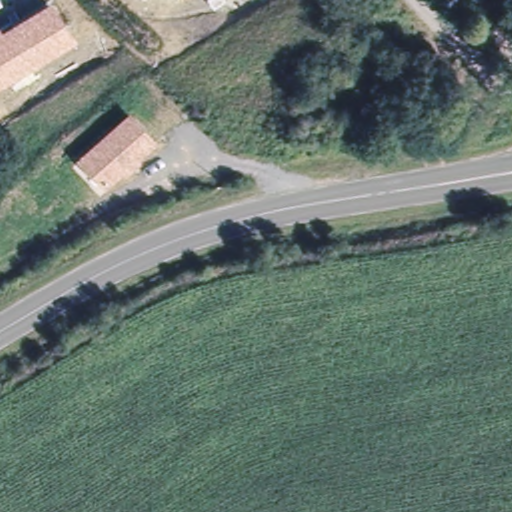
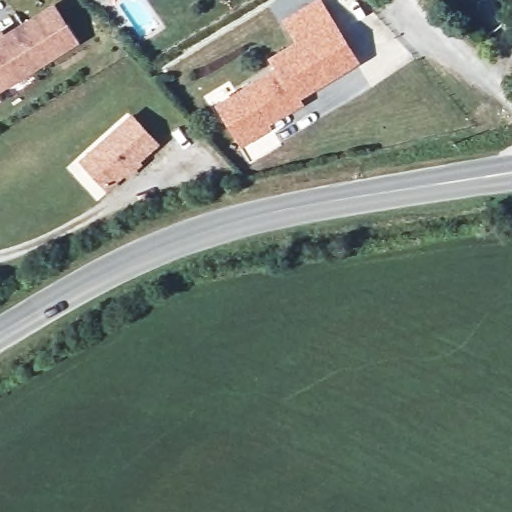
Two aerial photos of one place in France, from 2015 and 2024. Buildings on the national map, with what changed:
unchanged [(76,41),(0,86),(0,26),(3,30),(51,0),(54,0),(76,41)]
new [(298,46),(282,20),(314,0),(330,26),(298,46)]
new [(278,73),(271,62),(330,26),(354,64),(295,100),(298,106),(241,141),(221,109),(278,73)]
unchanged [(159,142),(106,190),(78,160),(130,112),(159,142)]

